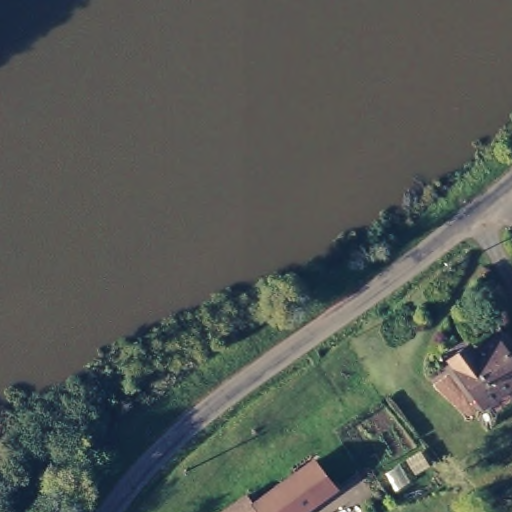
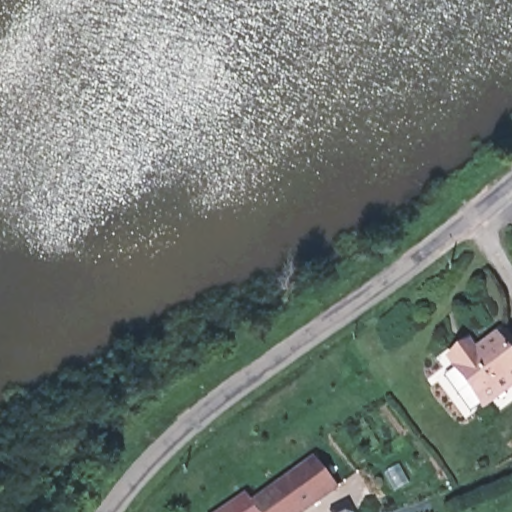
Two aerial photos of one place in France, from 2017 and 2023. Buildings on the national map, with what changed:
unchanged [(495,322),(512,340),(512,375),(485,402),(450,366),(444,358),(462,340),(469,346),(485,331),(495,322)]
unchanged [(240,490),(249,502),(313,458),(330,480),(286,512),(209,512),(240,490)]

